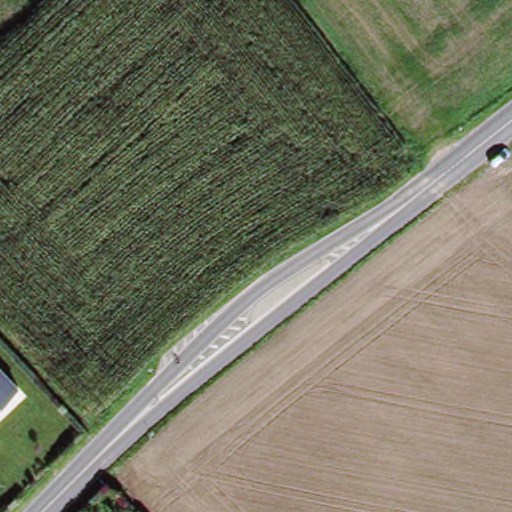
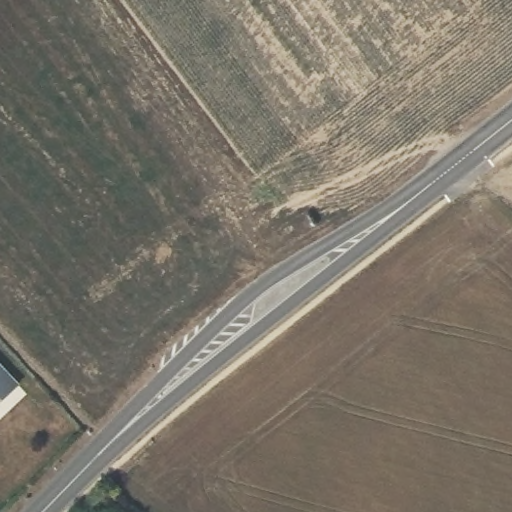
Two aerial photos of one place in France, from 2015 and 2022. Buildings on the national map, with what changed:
unchanged [(19,384),(0,402),(0,363),(19,384)]

